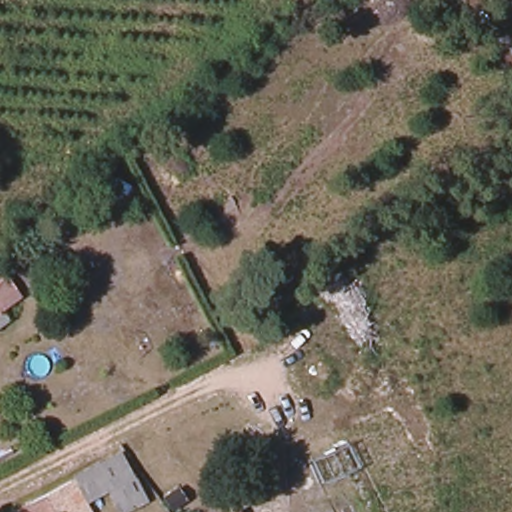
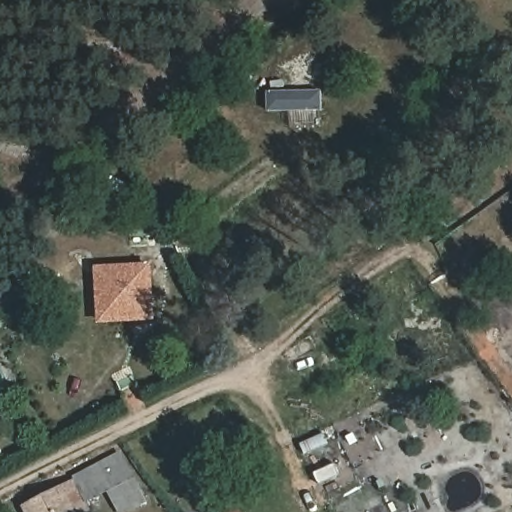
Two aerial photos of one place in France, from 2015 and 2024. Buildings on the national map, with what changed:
new [(155,321),(96,323),(95,266),(152,263),(155,321)]
unchanged [(19,506),(120,451),(149,501),(133,510),(131,506),(119,510),(107,492),(87,504),(90,512),(23,512),(19,506)]
unchanged [(240,512),(232,512),(237,508),(240,512)]

